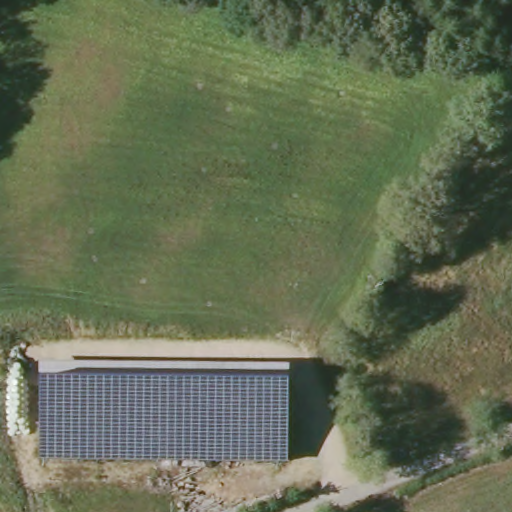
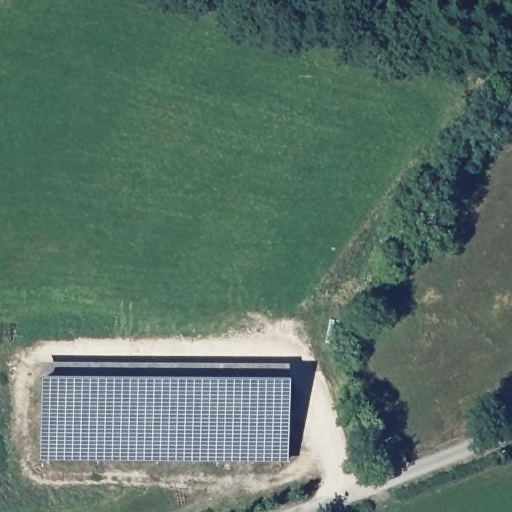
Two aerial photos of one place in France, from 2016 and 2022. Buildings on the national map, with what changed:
unchanged [(292,363),(290,462),(40,464),(40,362),(292,363)]

